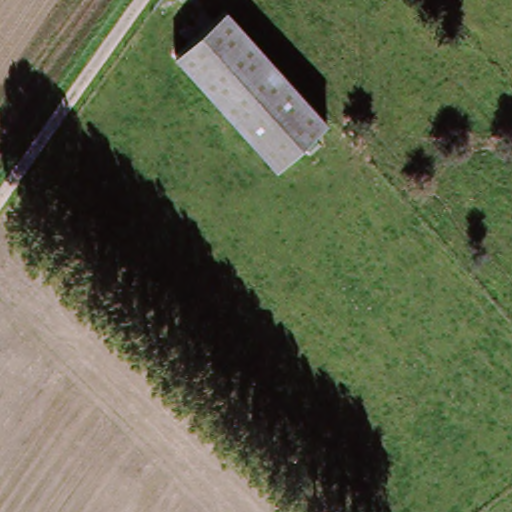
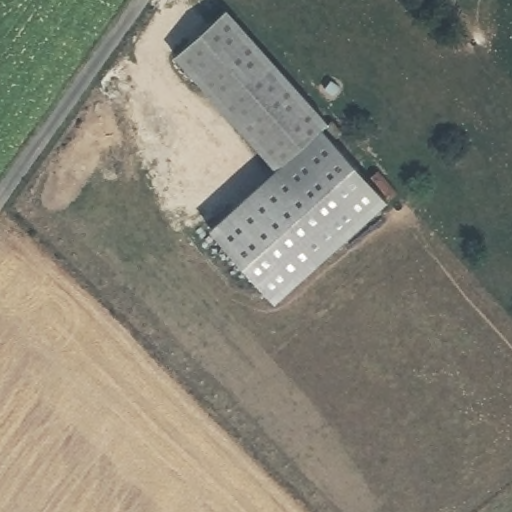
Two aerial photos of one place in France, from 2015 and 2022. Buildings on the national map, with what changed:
unchanged [(279,170),(175,61),(225,15),(329,124),(279,170)]
new [(276,167),(279,170),(325,128),(388,199),(274,302),(207,227),(276,167)]

